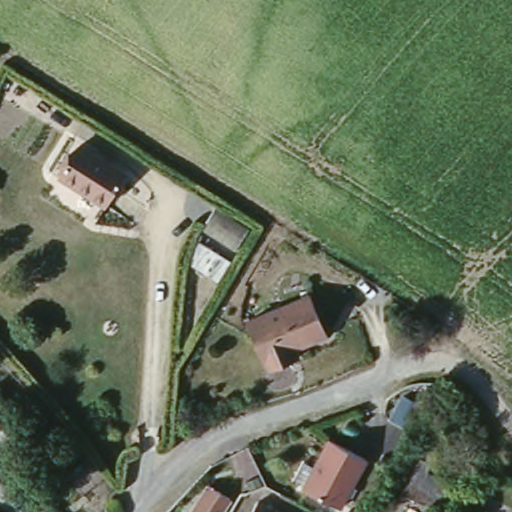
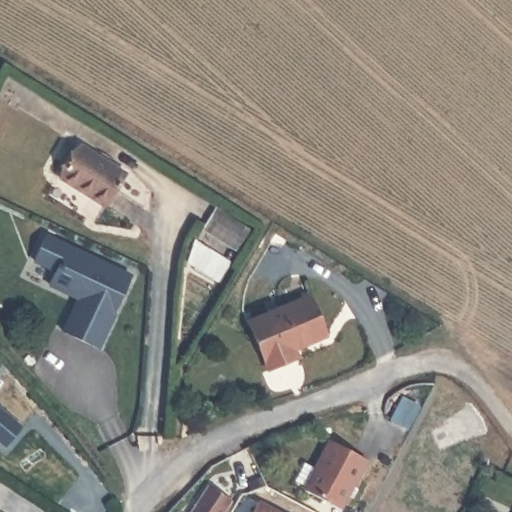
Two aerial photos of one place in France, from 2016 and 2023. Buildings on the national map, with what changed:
unchanged [(55,182),(66,165),(86,132),(133,162),(113,194),(102,211),(55,182)]
unchanged [(215,280),(179,257),(213,204),(249,227),(215,280)]
new [(129,274),(94,350),(60,333),(79,293),(51,279),(59,266),(35,255),(45,233),(129,274)]
unchanged [(291,358),(269,369),(246,319),(307,291),(325,329),(295,343),(300,355),(291,358)]
unchanged [(0,437),(0,407),(18,422),(3,440),(0,437)]
unchanged [(326,443),(363,462),(342,509),(303,491),(326,443)]
unchanged [(411,462),(455,482),(444,505),(400,486),(411,462)]
unchanged [(227,499),(221,512),(189,512),(201,487),(227,499)]
unchanged [(278,512),(251,512),(258,499),(278,512)]

